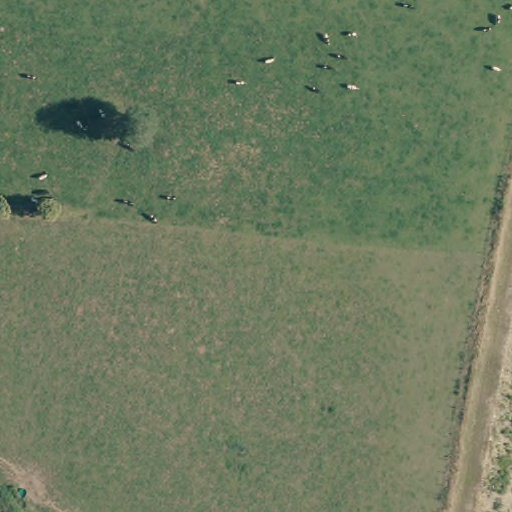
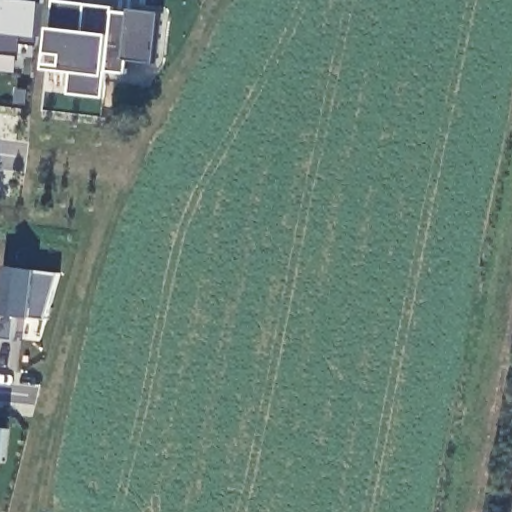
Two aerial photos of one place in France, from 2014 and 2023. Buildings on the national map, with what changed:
new [(156,64),(129,60),(127,77),(105,75),(102,99),(65,94),(64,72),(46,70),(48,48),(20,44),(18,56),(0,54),(0,0),(36,0),(46,1),(83,4),(79,31),(110,36),(113,12),(133,15),(134,10),(162,13),(156,64)]
new [(44,321),(0,317),(0,292),(3,267),(59,274),(44,321)]
new [(3,463),(0,463),(0,429),(9,430),(3,463)]

